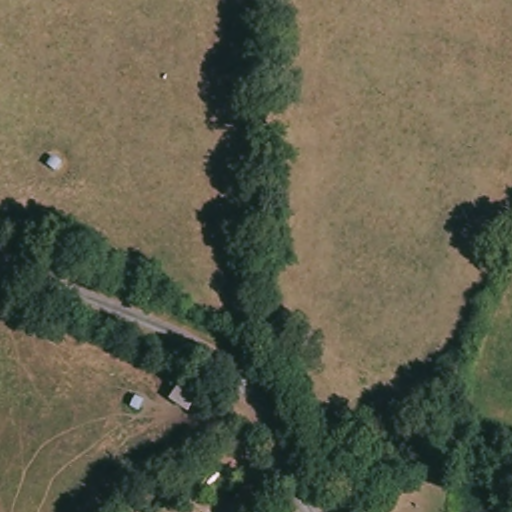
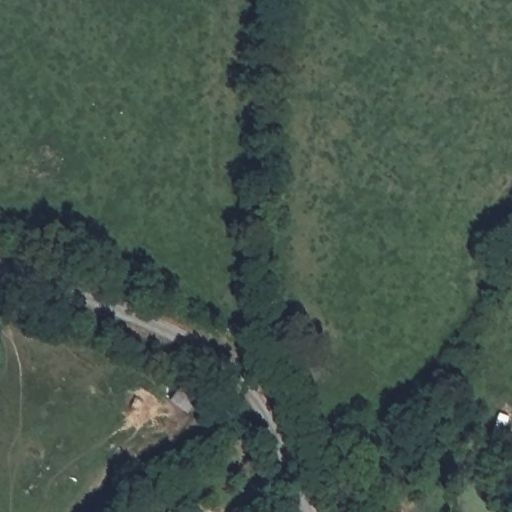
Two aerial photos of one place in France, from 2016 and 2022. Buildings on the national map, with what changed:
unchanged [(197,398),(187,413),(171,402),(181,387),(197,398)]

